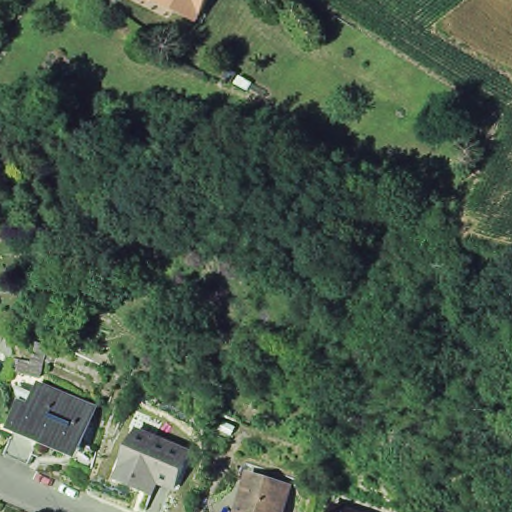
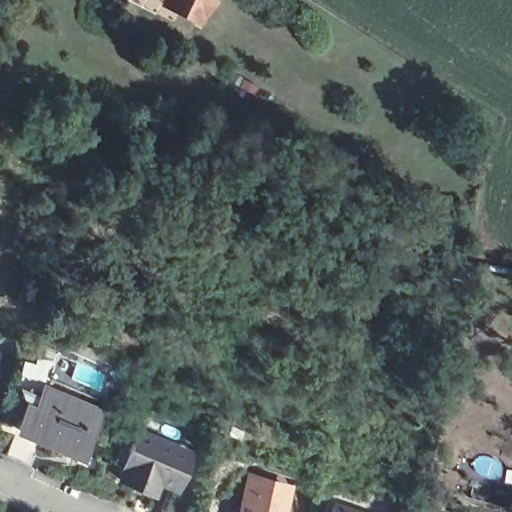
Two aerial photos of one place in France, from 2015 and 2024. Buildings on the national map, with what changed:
unchanged [(198,20),(161,2),(162,0),(209,0),(198,20)]
unchanged [(42,368),(46,355),(56,358),(48,382),(27,376),(31,365),(42,368)]
unchanged [(11,454),(21,430),(31,406),(41,410),(50,388),(104,410),(87,448),(55,435),(52,442),(46,440),(35,465),(11,454)]
unchanged [(135,483),(115,475),(120,462),(120,461),(135,427),(188,450),(172,484),(155,477),(150,490),(135,483)]
unchanged [(285,512),(242,512),(252,484),(290,496),(285,512)]

